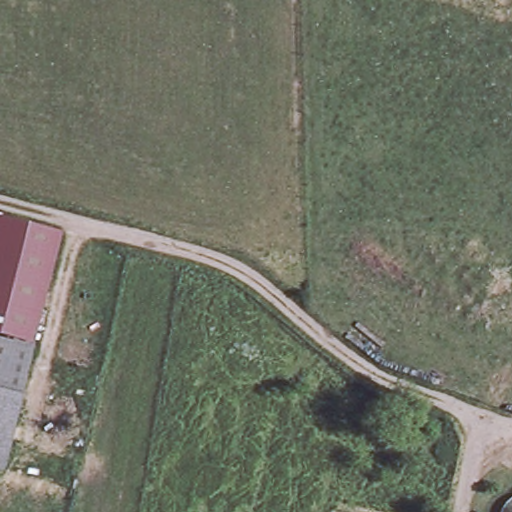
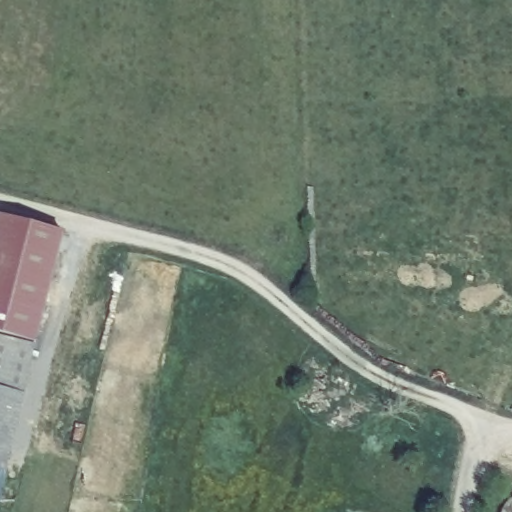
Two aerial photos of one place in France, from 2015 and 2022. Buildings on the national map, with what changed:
unchanged [(31,341),(0,332),(0,216),(60,233),(31,341)]
unchanged [(0,469),(0,468),(0,338),(32,347),(0,469)]

